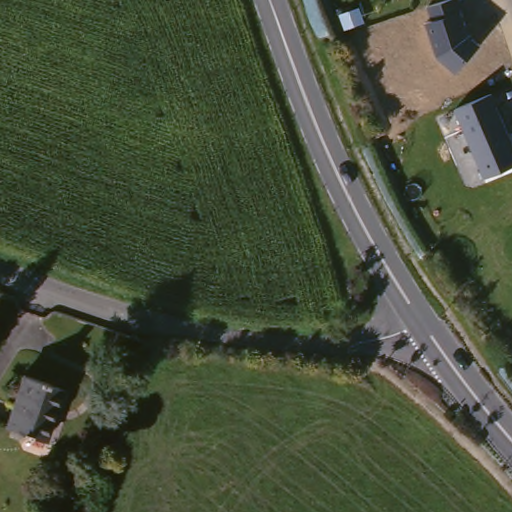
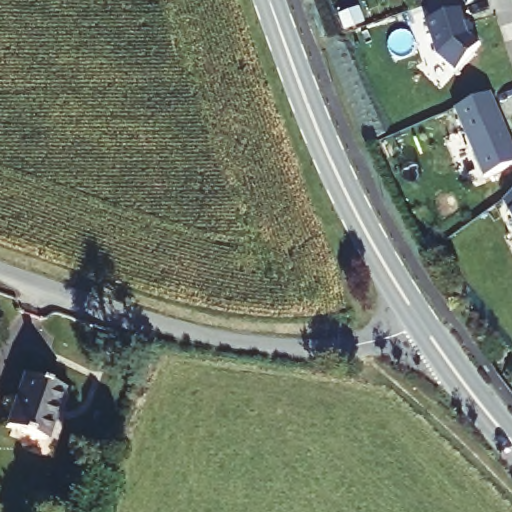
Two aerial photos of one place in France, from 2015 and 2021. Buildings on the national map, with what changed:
unchanged [(457,74),(437,58),(426,22),(432,20),(429,6),(452,0),(460,0),(470,37),(482,45),(457,74)]
unchanged [(512,166),(482,179),(452,106),(489,91),(512,148),(512,166)]
unchanged [(512,222),(502,204),(512,197),(512,222)]
unchanged [(63,390),(47,443),(1,429),(20,376),(63,390)]

